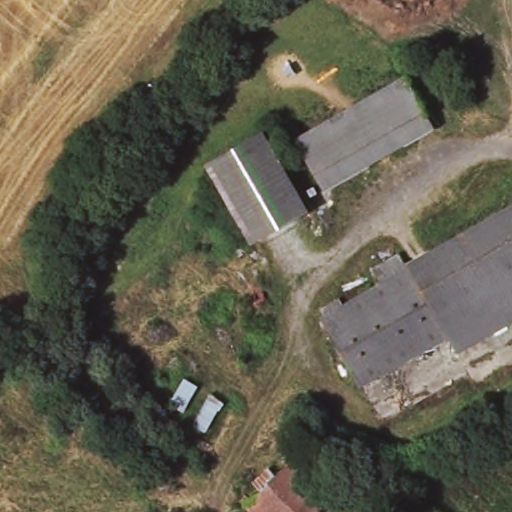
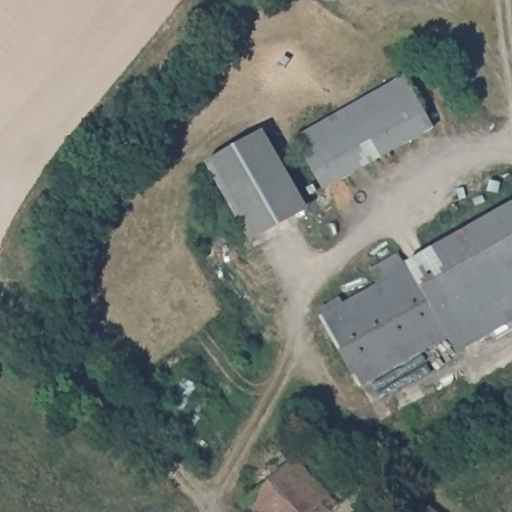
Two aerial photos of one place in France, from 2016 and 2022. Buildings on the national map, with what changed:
unchanged [(402,75),(433,127),(325,191),(291,140),(402,75)]
unchanged [(308,212),(251,245),(205,166),(260,132),(308,212)]
unchanged [(512,202),(512,325),(456,357),(445,340),(408,276),(401,268),(512,202)]
unchanged [(445,340),(360,392),(321,325),(375,292),(367,279),(391,264),(401,280),(408,276),(445,340)]
unchanged [(321,512),(245,512),(293,464),(331,502),(321,512)]

